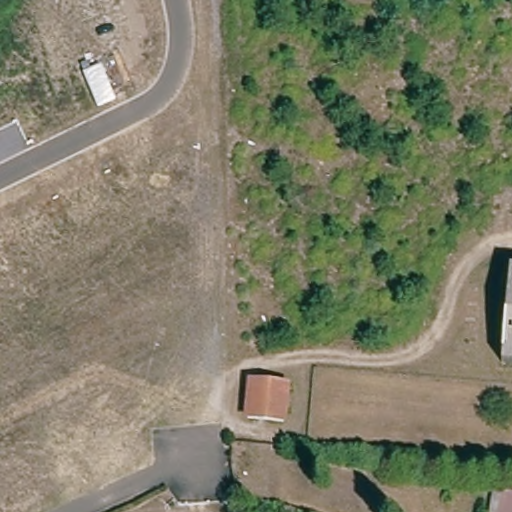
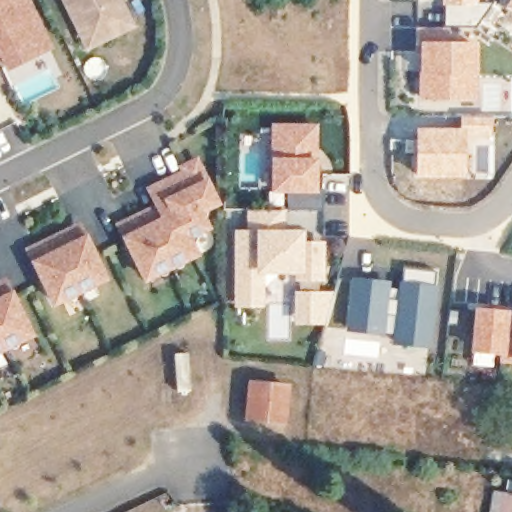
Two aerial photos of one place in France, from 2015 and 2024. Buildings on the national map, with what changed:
unchanged [(32,53),(7,65),(0,51),(0,0),(27,0),(42,29),(49,45),(32,53)]
unchanged [(80,30),(65,0),(120,0),(132,26),(109,37),(89,47),(80,30)]
new [(479,2),(495,2),(478,25),(447,26),(447,7),(443,7),(443,0),(479,0),(479,2)]
new [(509,0),(512,0),(512,14),(503,9),(509,0)]
new [(450,30),(451,42),(477,43),(477,72),(477,100),(419,101),(419,75),(419,43),(418,29),(450,30)]
new [(415,127),(459,127),(460,116),(493,117),(493,140),(469,140),(465,179),(415,178),(415,127)]
new [(316,127),(316,162),(315,189),(326,188),(326,212),(290,211),(291,189),(277,189),(276,162),(277,128),(316,127)]
new [(145,213),(152,211),(158,210),(171,204),(170,201),(163,188),(183,179),(188,176),(184,167),(197,161),(202,170),(206,180),(209,194),(210,204),(209,214),(206,224),(207,227),(187,237),(196,254),(184,260),(181,255),(156,267),(159,272),(147,278),(127,238),(122,228),(135,222),(139,217),(145,213)]
new [(249,230),(249,210),(287,210),(288,229),(305,230),(305,241),(325,242),(326,282),(297,283),(297,273),(265,275),(265,307),(237,308),(236,231),(249,230)]
new [(62,235),(68,235),(81,227),(86,239),(105,278),(92,284),(90,278),(65,291),(67,296),(55,302),(36,263),(32,253),(44,247),(52,239),(62,235)]
new [(391,282),(390,300),(398,300),(400,282),(405,282),(406,268),(436,272),(435,287),(440,287),(433,350),(394,346),(397,316),(387,314),(384,336),(347,332),(352,278),(391,282)]
demolished [(506,330),(510,282),(512,282),(512,366),(502,366),(506,330)]
new [(7,285),(12,296),(31,335),(18,341),(16,335),(4,341),(6,346),(0,349),(0,288),(7,285)]
new [(295,325),(295,292),(334,292),(326,318),(326,325),(295,325)]
new [(512,307),(512,363),(498,362),(499,356),(494,356),(493,367),(470,366),(471,352),(468,352),(473,305),(512,307)]
unchanged [(287,428),(241,424),(244,384),(290,387),(287,428)]
unchanged [(512,499),(512,512),(503,512),(506,498),(512,499)]
unchanged [(489,512),(489,510),(503,512),(489,512)]

